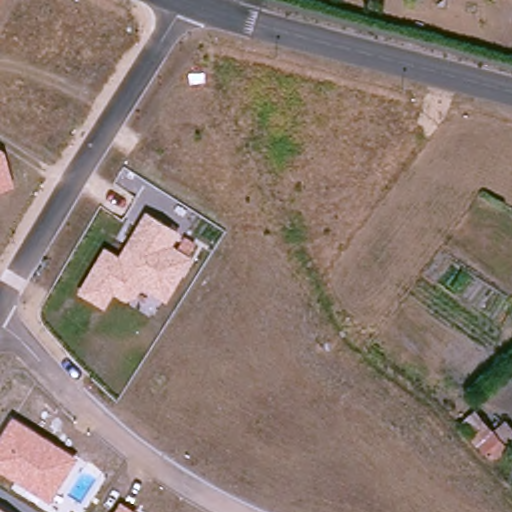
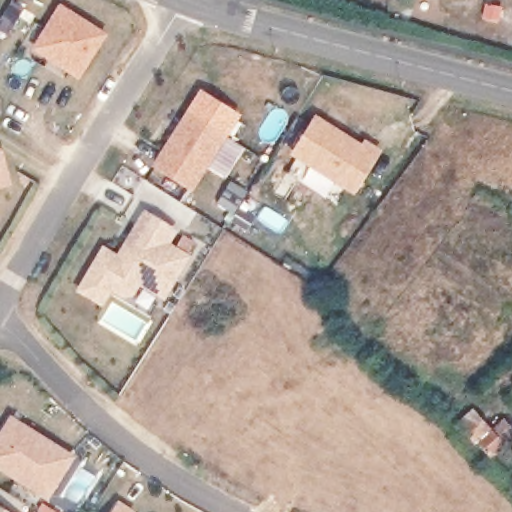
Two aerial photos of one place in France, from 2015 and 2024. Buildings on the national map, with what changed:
new [(32,49),(60,5),(107,34),(79,79),(32,49)]
new [(151,165),(188,107),(230,134),(193,191),(151,165)]
new [(290,155),(316,115),(362,145),(365,140),(381,151),(355,195),(290,155)]
unchanged [(13,188),(0,190),(0,147),(4,149),(13,188)]
unchanged [(180,232),(173,245),(192,256),(167,304),(140,290),(135,300),(124,302),(112,295),(104,310),(75,295),(102,246),(117,255),(144,212),(180,232)]
unchanged [(493,422),(503,434),(494,441),(496,445),(481,456),(466,437),(451,420),(465,407),(480,426),(483,430),(493,422)]
unchanged [(0,470),(0,434),(9,416),(77,458),(50,499),(0,470)]
unchanged [(119,500),(136,512),(112,512),(119,500)]
unchanged [(0,508),(6,512),(0,512),(0,508)]

